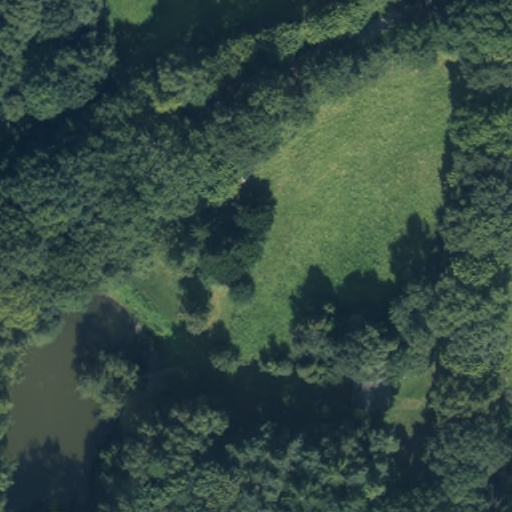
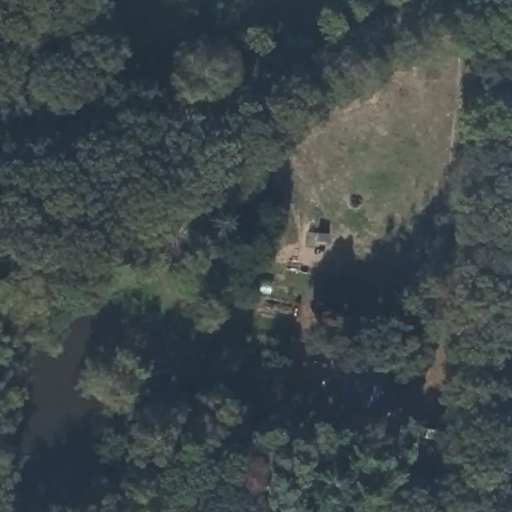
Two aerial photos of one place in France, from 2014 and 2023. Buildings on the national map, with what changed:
unchanged [(386,409),(360,406),(363,371),(390,374),(386,409)]

